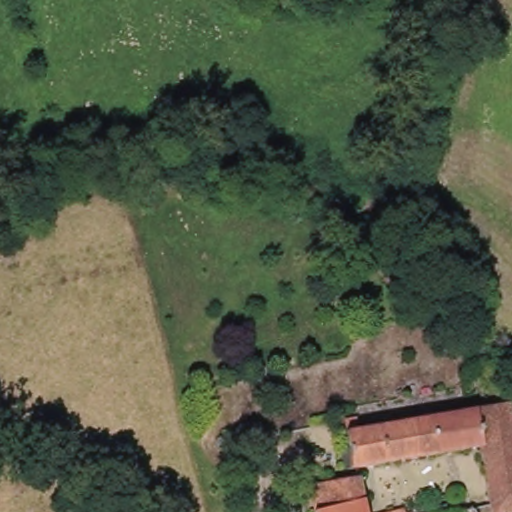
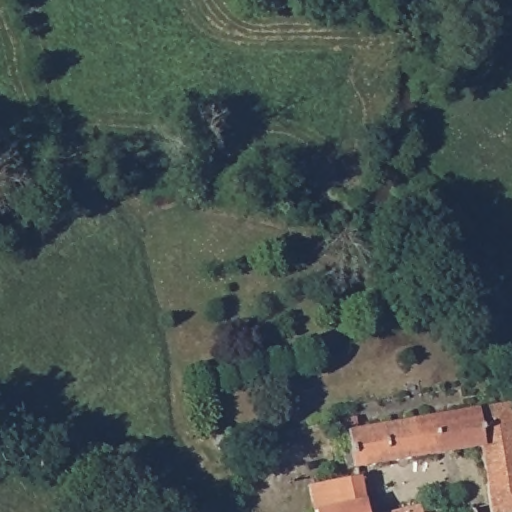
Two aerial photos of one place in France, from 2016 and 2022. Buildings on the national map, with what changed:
unchanged [(492,512),(477,445),(354,470),(351,455),(347,439),(343,420),(357,417),(359,431),(506,401),(512,428),(512,512),(492,512)]
unchanged [(363,476),(370,512),(315,512),(310,487),(355,477),(363,476)]

